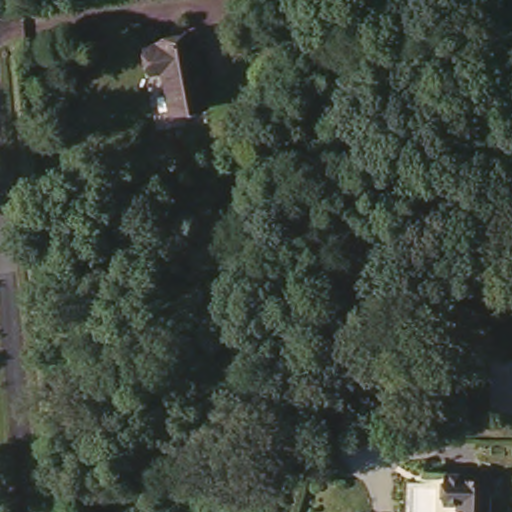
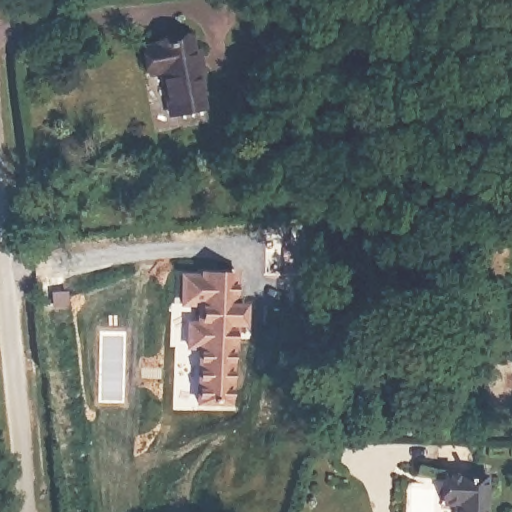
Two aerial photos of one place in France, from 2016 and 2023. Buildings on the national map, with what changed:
unchanged [(200,94),(202,105),(172,110),(164,62),(150,65),(145,41),(194,32),(196,47),(203,47),(206,64),(199,64),(204,94),(200,94)]
new [(203,275),(202,272),(236,273),(235,305),(247,305),(246,324),(234,325),(232,403),(199,402),(201,346),(189,346),(189,322),(198,323),(199,303),(182,302),(182,275),(203,275)]
unchanged [(489,469),(488,512),(463,512),(464,496),(449,497),(450,469),(489,469)]

